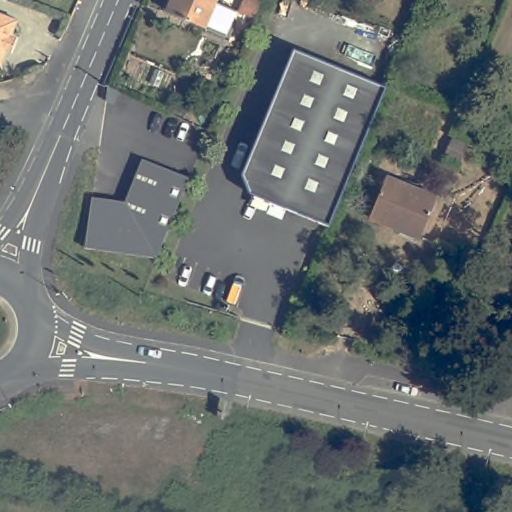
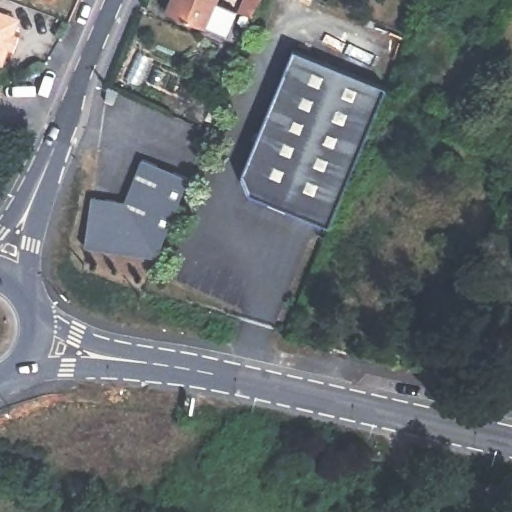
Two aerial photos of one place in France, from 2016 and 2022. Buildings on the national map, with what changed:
unchanged [(223,2),(229,4),(226,10),(232,12),(223,34),(173,11),(178,0),(224,0),(223,2)]
unchanged [(263,10),(249,4),(251,0),(268,0),(263,10)]
unchanged [(15,22),(0,67),(0,17),(15,22)]
unchanged [(353,161),(325,228),(319,225),(246,195),(238,176),(291,51),(377,87),(383,90),(353,161)]
unchanged [(108,86),(120,92),(113,105),(106,102),(108,86)]
unchanged [(155,256),(89,249),(95,200),(95,199),(124,202),(143,158),(188,177),(189,177),(155,256)]
demolished [(387,174),(436,194),(420,233),(370,212),(387,174)]

